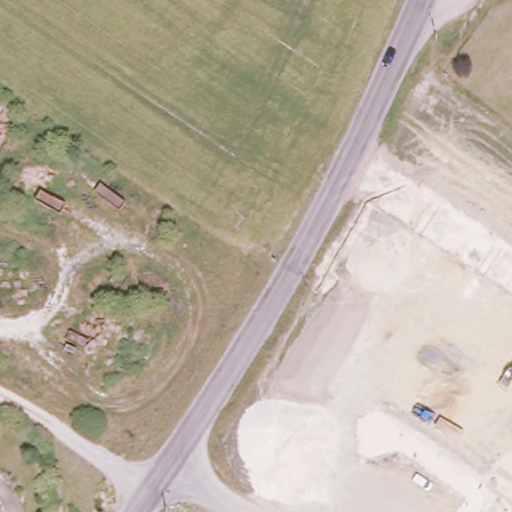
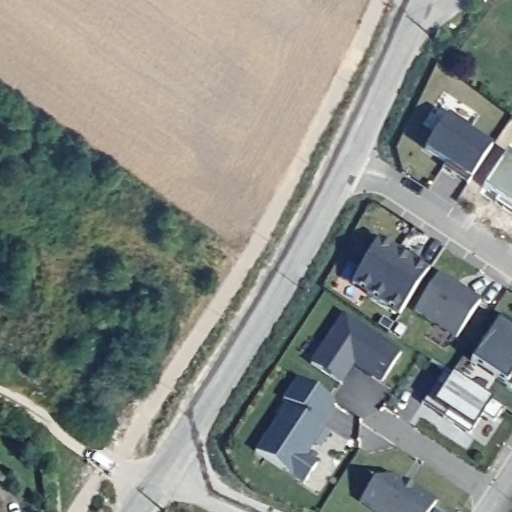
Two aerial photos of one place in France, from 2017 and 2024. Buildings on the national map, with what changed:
new [(425,152),(450,115),(472,130),(469,135),(492,151),(468,187),(452,176),(443,171),(446,165),(455,171),(425,152)]
new [(507,155),(512,158),(512,209),(483,189),(507,155)]
new [(415,266),(417,262),(430,271),(400,318),(353,287),(380,244),(415,266)]
new [(480,303),(457,339),(417,313),(439,276),(480,303)]
new [(310,367),(342,317),(400,355),(382,385),(353,366),(340,386),(310,367)]
new [(512,389),(471,364),(501,318),(512,325),(512,389)]
new [(335,405),(321,426),(325,429),(306,459),(313,465),(301,485),(252,452),(285,404),(281,401),(295,379),(335,405)]
new [(402,486),(403,483),(437,506),(432,512),(380,512),(363,501),(375,482),(393,480),(402,486)]

